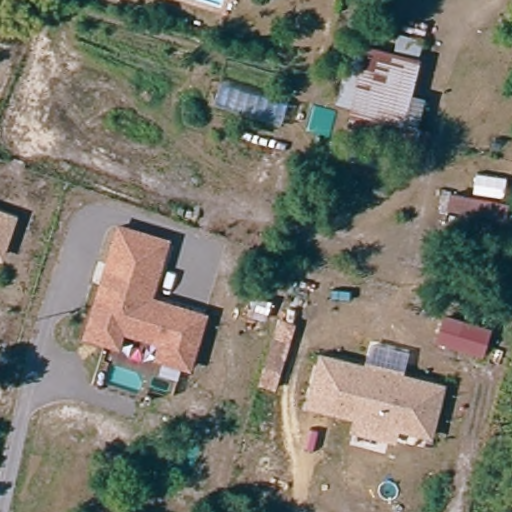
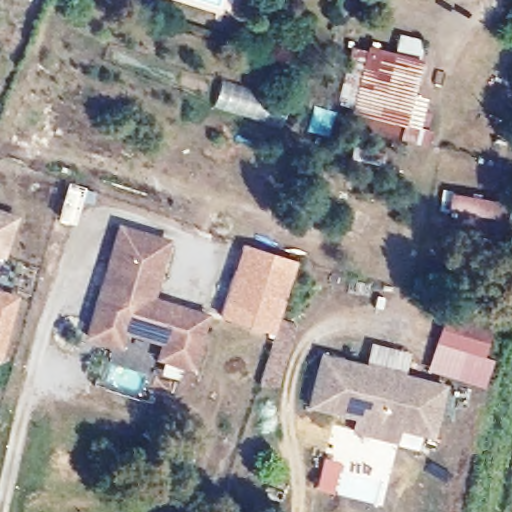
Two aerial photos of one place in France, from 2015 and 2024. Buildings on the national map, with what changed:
unchanged [(334,109),(349,40),(421,60),(413,92),(427,97),(422,129),(334,109)]
unchanged [(508,203),(503,222),(446,210),(448,192),(508,203)]
unchanged [(2,254),(0,254),(0,208),(18,214),(2,254)]
unchanged [(171,239),(154,297),(209,314),(191,369),(153,358),(156,344),(124,334),(119,349),(81,337),(117,222),(171,239)]
new [(273,336),(218,316),(241,244),(295,262),(277,315),(278,318),(273,336)]
new [(0,353),(0,289),(17,294),(0,353)]
unchanged [(441,314),(491,327),(484,354),(434,339),(441,314)]
unchanged [(295,323),(275,389),(258,384),(278,318),(295,323)]
unchanged [(317,352),(446,383),(432,436),(400,429),(398,442),(350,432),(351,417),(303,405),(317,352)]

